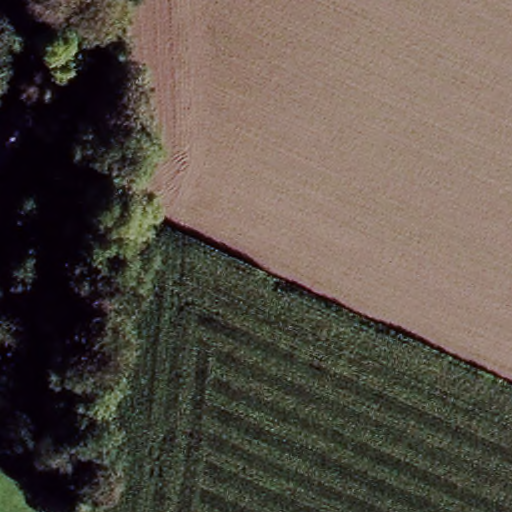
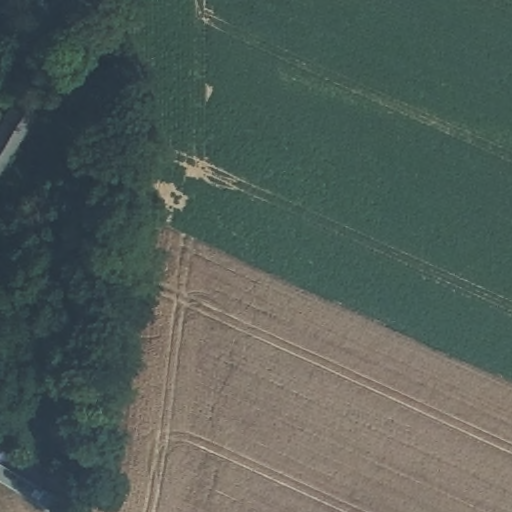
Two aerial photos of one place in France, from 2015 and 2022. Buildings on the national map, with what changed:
unchanged [(17,93),(35,102),(35,107),(0,173),(0,111),(5,114),(17,93)]

